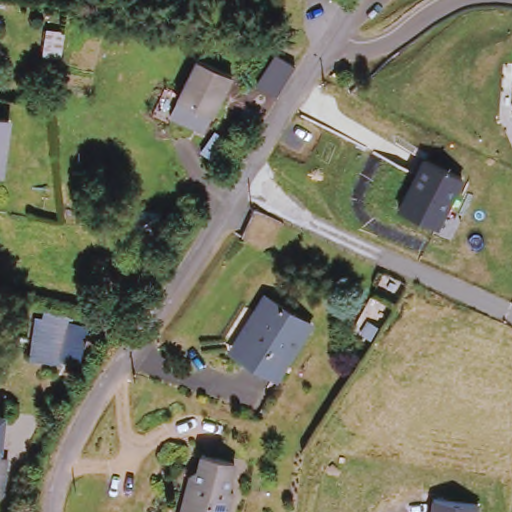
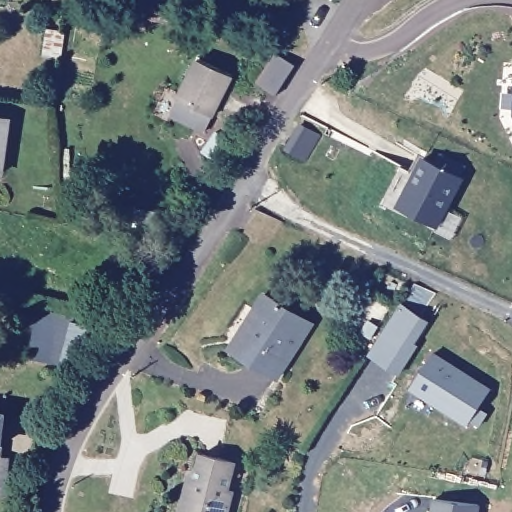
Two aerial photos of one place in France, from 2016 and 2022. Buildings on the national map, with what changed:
unchanged [(236,76),(208,129),(173,112),(203,58),(236,76)]
unchanged [(512,101),(512,114),(511,112),(512,101)]
unchanged [(14,125),(5,176),(0,175),(0,122),(14,125)]
unchanged [(464,177),(438,228),(396,206),(421,156),(464,177)]
unchanged [(313,327),(277,382),(236,354),(231,350),(256,313),(267,297),(313,327)]
new [(369,353),(404,302),(431,320),(417,342),(419,345),(399,375),(369,353)]
unchanged [(90,331),(83,371),(57,367),(65,326),(90,331)]
new [(434,353),(491,389),(466,428),(410,390),(434,353)]
unchanged [(9,420),(3,450),(0,449),(0,419),(9,420)]
unchanged [(3,450),(0,470),(0,449),(3,450)]
unchanged [(194,484),(201,456),(232,465),(224,495),(229,496),(225,512),(181,512),(189,483),(194,484)]
unchanged [(429,512),(431,500),(478,506),(477,512),(429,512)]

